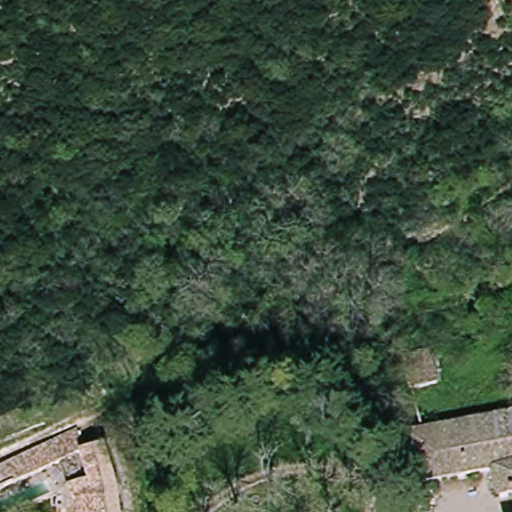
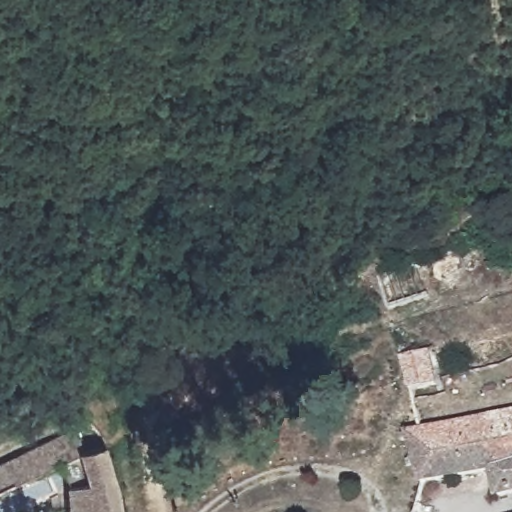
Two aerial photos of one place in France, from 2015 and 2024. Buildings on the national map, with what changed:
unchanged [(434,339),(442,371),(417,377),(409,345),(434,339)]
unchanged [(492,476),(419,481),(404,433),(417,431),(512,413),(512,494),(493,496),(492,476)]
unchanged [(17,507),(6,512),(0,512),(0,462),(26,452),(63,436),(70,451),(8,481),(17,507)]
unchanged [(75,512),(72,485),(95,475),(90,456),(107,447),(120,512),(75,512)]

